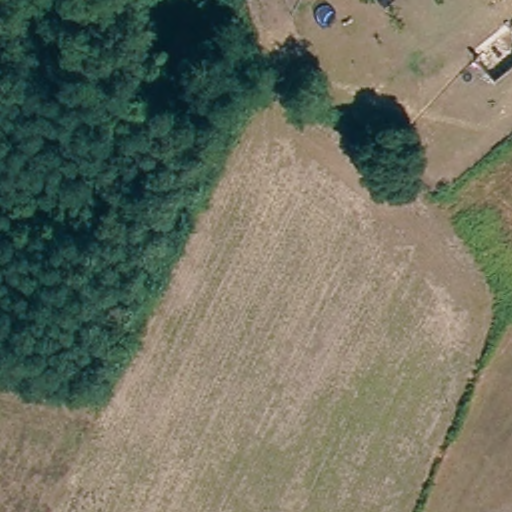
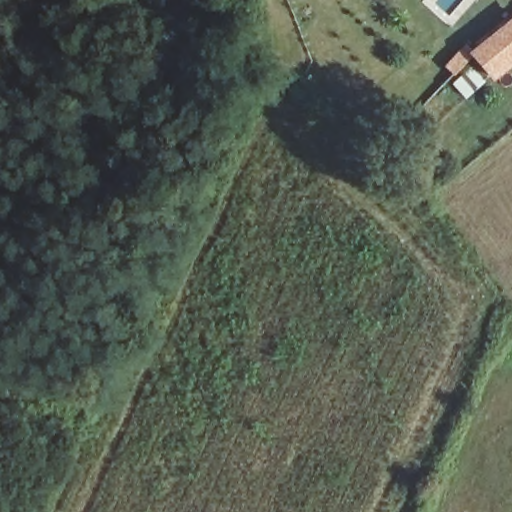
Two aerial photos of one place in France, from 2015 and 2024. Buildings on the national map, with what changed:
new [(467,54),(512,19),(512,65),(492,80),(467,54)]
demolished [(512,27),(512,71),(500,85),(476,60),(509,24),(512,27)]

